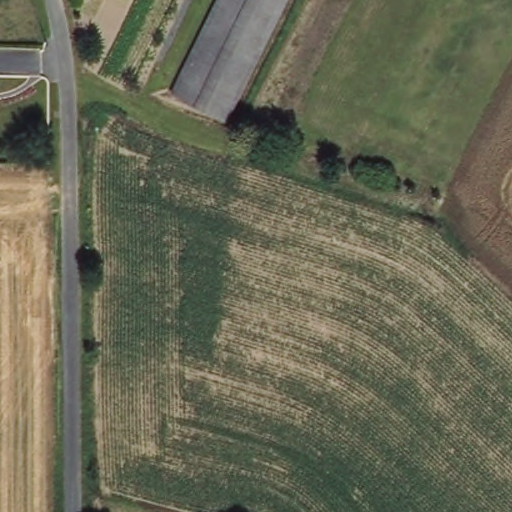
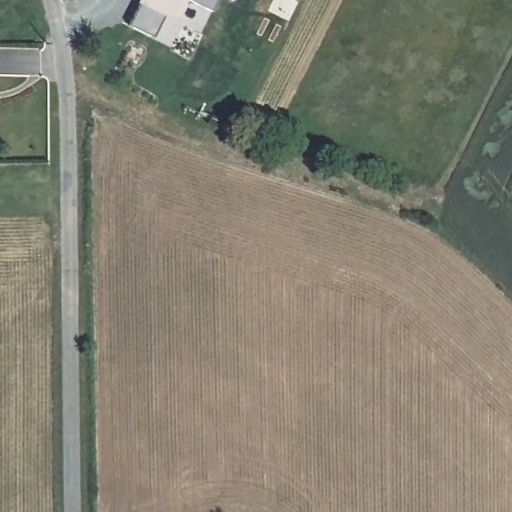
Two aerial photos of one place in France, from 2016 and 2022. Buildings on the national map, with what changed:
new [(164,16),(154,37),(130,25),(140,5),(136,3),(138,0),(186,0),(175,21),(164,16)]
demolished [(170,93),(220,0),(287,0),(222,121),(170,93)]
new [(189,0),(216,0),(211,11),(189,0)]
new [(230,0),(232,0),(232,1),(230,0)]

